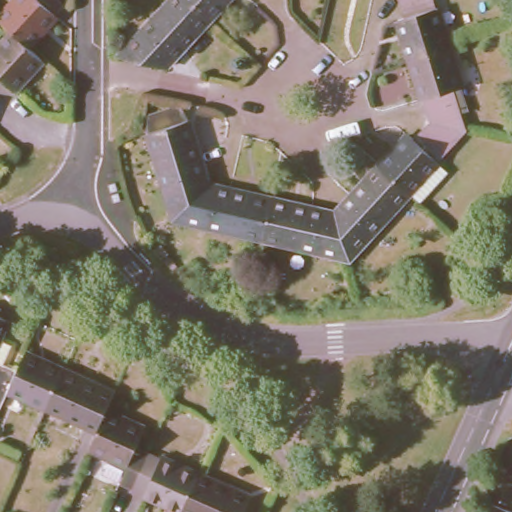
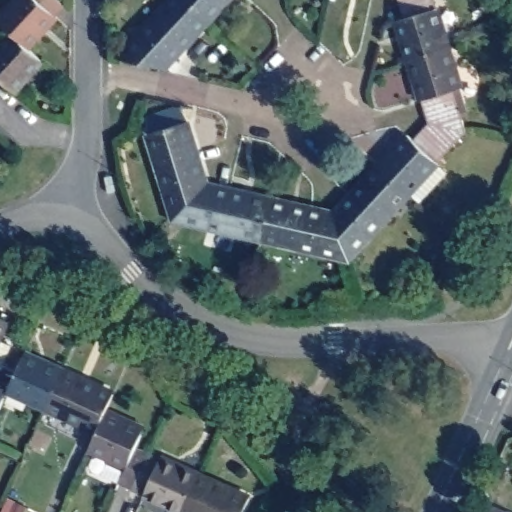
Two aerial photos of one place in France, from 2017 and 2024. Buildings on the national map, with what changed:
unchanged [(63,6),(27,47),(13,34),(0,21),(0,20),(17,0),(57,0),(63,6)]
unchanged [(167,68),(121,57),(175,0),(191,0),(212,20),(167,68)]
unchanged [(212,20),(191,0),(231,0),(212,20)]
unchanged [(411,60),(400,21),(405,19),(399,0),(433,0),(447,49),(411,60)]
unchanged [(13,34),(27,47),(42,60),(13,92),(0,79),(0,48),(13,34)]
unchanged [(447,49),(460,89),(454,90),(465,132),(428,124),(422,101),(411,60),(447,49)]
unchanged [(187,122),(199,162),(206,186),(177,219),(149,132),(187,122)]
unchanged [(407,193),(380,167),(409,137),(414,141),(428,124),(465,132),(438,161),(449,172),(421,202),(410,191),(407,193)]
unchanged [(333,216),(350,197),(380,167),(407,193),(347,258),(333,216)]
unchanged [(262,238),(177,219),(206,186),(230,192),(270,201),(262,238)]
unchanged [(347,258),(262,238),(270,201),(312,211),(333,216),(347,258)]
unchanged [(8,318),(0,337),(0,314),(8,318)]
unchanged [(20,370),(27,353),(67,370),(50,407),(12,389),(9,396),(3,408),(0,406),(0,361),(20,370)]
unchanged [(67,370),(117,392),(109,410),(100,429),(50,407),(67,370)]
unchanged [(93,447),(100,429),(109,410),(147,427),(138,446),(152,452),(135,488),(122,482),(131,464),(93,447)]
unchanged [(149,494),(135,488),(152,452),(203,475),(187,511),(149,494)]
unchanged [(247,512),(190,512),(187,511),(203,475),(253,498),(247,512)]
unchanged [(500,512),(485,512),(488,507),(500,512)]

